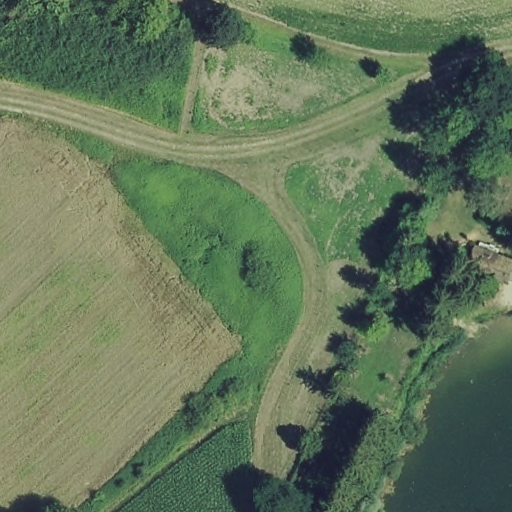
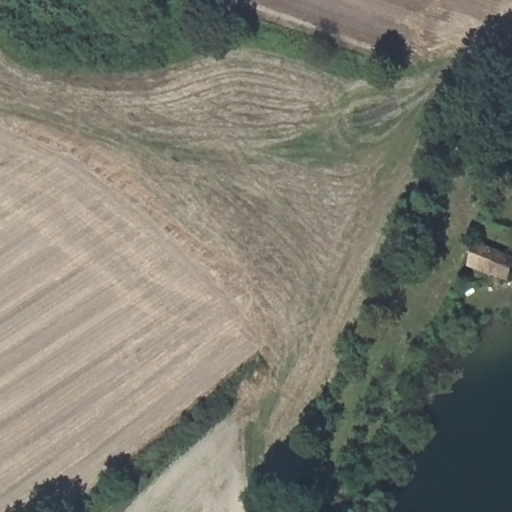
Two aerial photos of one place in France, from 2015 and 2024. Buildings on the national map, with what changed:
unchanged [(453,266),(466,242),(475,246),(498,257),(486,279),(477,275),(453,266)]

